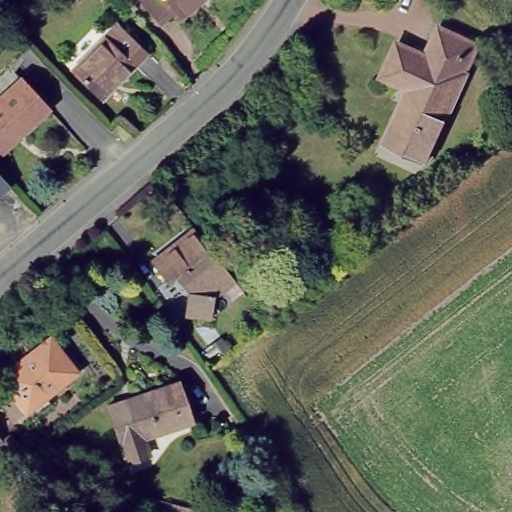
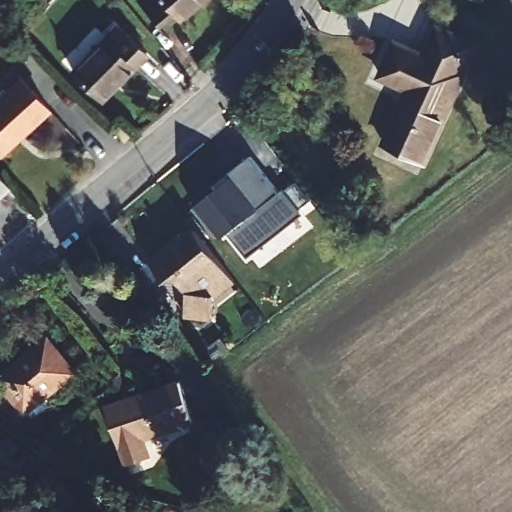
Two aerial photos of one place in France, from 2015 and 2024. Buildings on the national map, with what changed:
unchanged [(185,18),(178,11),(165,22),(146,0),(205,0),(185,18)]
unchanged [(101,99),(75,71),(121,25),(147,53),(101,99)]
unchanged [(393,145),(417,90),(390,77),(405,44),(432,57),(446,28),(484,47),(455,110),(457,111),(446,135),(434,163),(419,156),(393,145)]
unchanged [(48,107),(2,152),(0,151),(0,99),(21,79),(48,107)]
unchanged [(127,141),(117,131),(125,122),(135,133),(127,141)]
new [(251,157),(276,196),(285,190),(303,218),(246,263),(229,238),(220,243),(192,205),(251,157)]
unchanged [(0,193),(0,177),(8,186),(0,193)]
unchanged [(185,310),(187,288),(172,270),(165,276),(150,257),(191,222),(232,273),(212,290),(212,296),(210,312),(192,311),(185,310)]
unchanged [(52,338),(79,374),(27,411),(1,377),(52,338)]
unchanged [(112,405),(182,381),(194,420),(124,444),(112,405)]
unchanged [(0,444),(0,438),(3,442),(0,444)]

